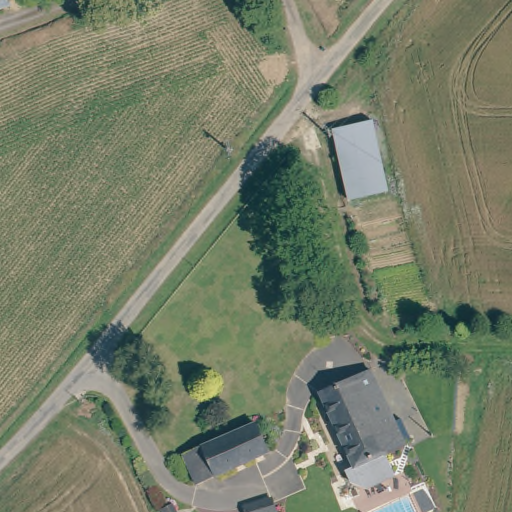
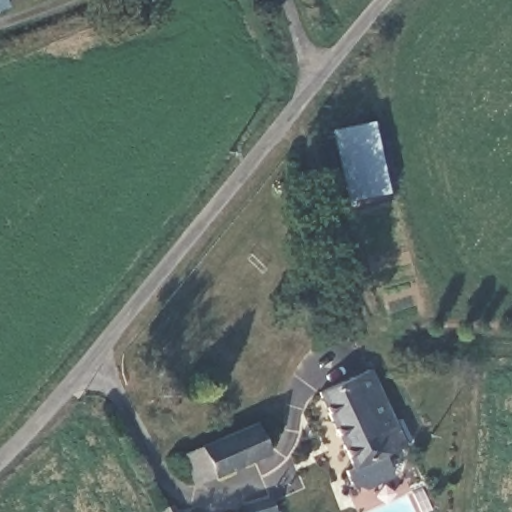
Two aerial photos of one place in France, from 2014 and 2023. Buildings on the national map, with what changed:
unchanged [(333,131),(372,122),(387,193),(348,201),(333,131)]
unchanged [(384,476),(366,485),(352,480),(346,468),(354,464),(320,390),(370,366),(404,441),(383,451),(393,472),(384,476)]
unchanged [(182,455),(201,447),(254,423),(268,454),(215,477),(195,486),(182,455)]
unchanged [(271,499),(276,512),(245,512),(243,507),(271,499)]
unchanged [(173,505),(177,512),(163,512),(162,510),(173,505)]

